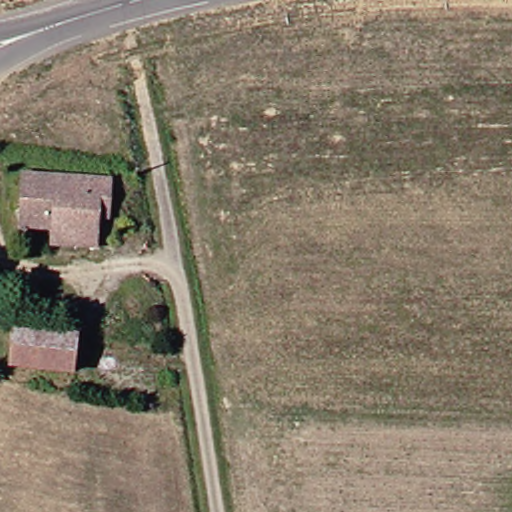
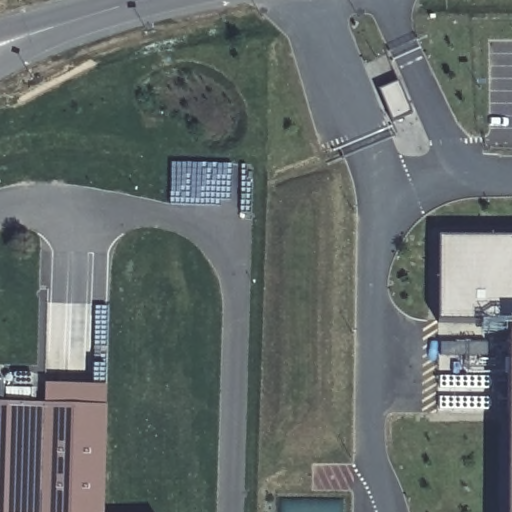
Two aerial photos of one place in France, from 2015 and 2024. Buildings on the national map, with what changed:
new [(399,79),(413,112),(392,121),(379,88),(399,79)]
demolished [(102,199),(101,218),(100,230),(58,227),(23,223),(26,173),(115,179),(114,199),(102,199)]
new [(508,512),(511,320),(439,320),(440,236),(512,237),(512,512),(508,512)]
new [(1,402),(46,404),(48,399),(106,400),(103,512),(0,512),(0,379),(3,379),(1,402)]
new [(49,379),(110,380),(110,400),(48,399),(49,379)]

